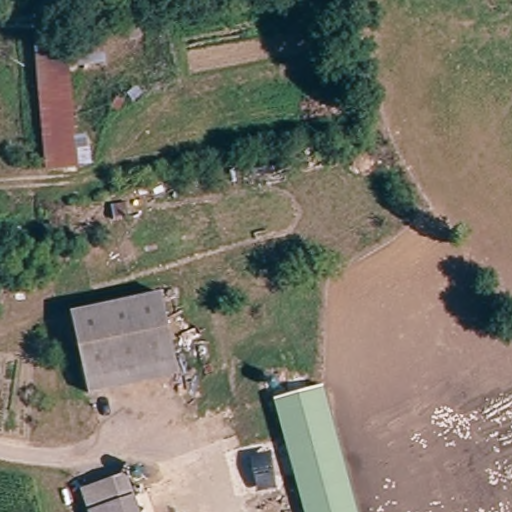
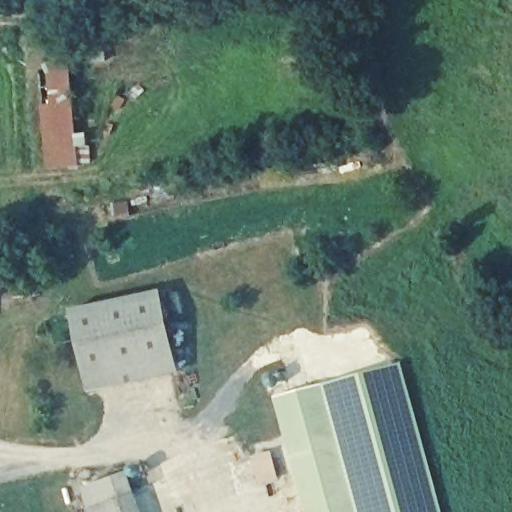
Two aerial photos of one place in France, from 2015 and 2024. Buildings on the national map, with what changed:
unchanged [(105,31),(107,61),(75,63),(75,71),(71,71),(76,130),(89,130),(91,163),(44,169),(32,31),(105,31)]
unchanged [(67,314),(155,291),(169,344),(175,369),(90,390),(88,385),(67,314)]
new [(402,363),(442,512),(356,512),(320,387),(402,363)]
unchanged [(356,512),(308,512),(275,400),(320,387),(356,512)]
new [(271,450),(278,480),(257,485),(250,456),(271,450)]
unchanged [(124,471),(134,494),(127,497),(133,512),(93,512),(83,486),(124,471)]

